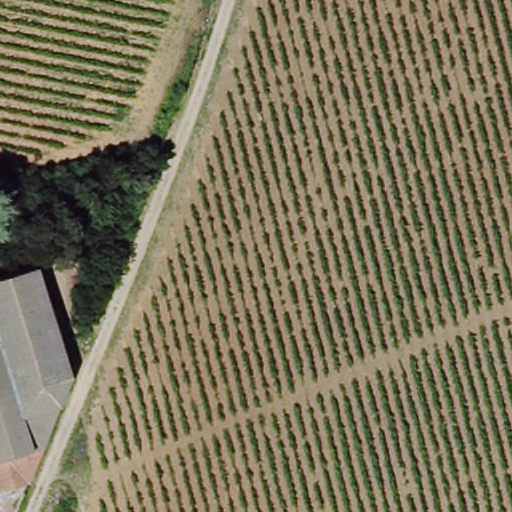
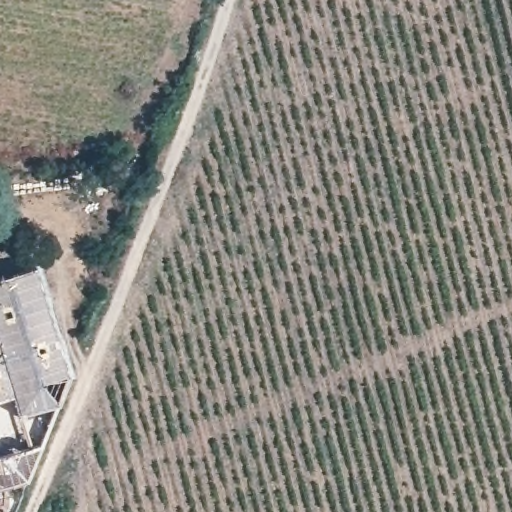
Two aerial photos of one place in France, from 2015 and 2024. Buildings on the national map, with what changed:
unchanged [(30,485),(0,487),(0,283),(41,269),(65,353),(73,380),(30,485)]

